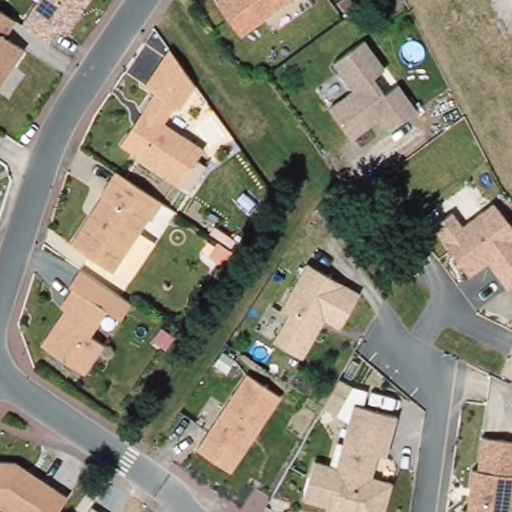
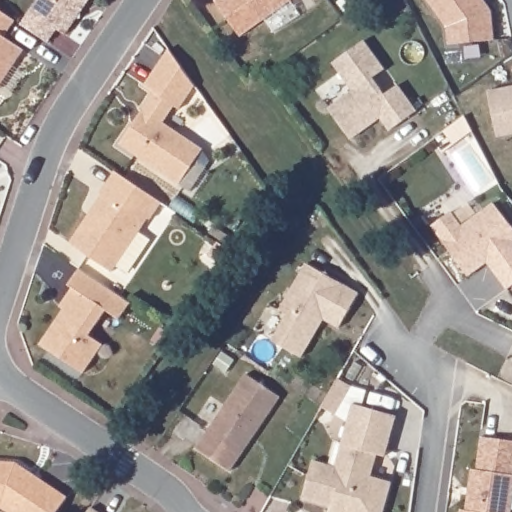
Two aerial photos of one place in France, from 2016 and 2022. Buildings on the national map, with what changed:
unchanged [(56,31),(47,42),(20,22),(34,0),(90,0),(67,37),(56,31)]
unchanged [(215,1),(217,0),(291,0),(240,36),(215,1)]
new [(493,40),(448,43),(447,25),(428,0),(483,0),(491,11),(493,40)]
unchanged [(5,13),(16,21),(5,37),(25,50),(0,86),(0,10),(5,13)]
unchanged [(353,138),(330,108),(354,90),(333,62),(363,39),(385,67),(373,76),(386,92),(398,82),(418,108),(392,129),(382,116),(372,124),(353,138)]
unchanged [(191,191),(181,184),(120,144),(155,93),(145,86),(170,49),(196,86),(180,109),(175,106),(164,123),(204,150),(197,160),(207,166),(191,191)]
new [(512,134),(498,137),(488,89),(512,85),(512,134)]
unchanged [(142,192),(157,203),(146,220),(144,218),(107,272),(65,243),(97,195),(96,193),(111,171),(142,192)]
unchanged [(512,231),(512,285),(506,290),(486,263),(467,277),(431,227),(450,212),(461,227),(492,204),(512,231)]
unchanged [(231,251),(222,264),(210,255),(218,243),(231,251)]
unchanged [(272,340),(288,314),(280,309),(307,263),(360,293),(340,328),(324,319),(302,357),(272,340)]
unchanged [(131,302),(120,319),(107,310),(89,335),(103,344),(84,373),(41,344),(70,301),(66,298),(73,287),(69,285),(80,268),(131,302)]
unchanged [(247,374),(281,397),(230,471),(197,448),(247,374)]
unchanged [(332,507),(302,499),(313,461),(336,467),(342,444),(353,404),(396,416),(385,456),(377,454),(371,477),(392,482),(383,512),(331,512),(332,507)]
unchanged [(512,511),(512,512),(461,512),(462,510),(467,510),(472,470),(477,470),(482,437),(512,441),(512,511)]
unchanged [(26,469),(41,479),(67,497),(58,512),(8,512),(1,507),(0,507),(0,462),(16,462),(26,469)]
unchanged [(93,508),(98,512),(90,512),(93,508)]

